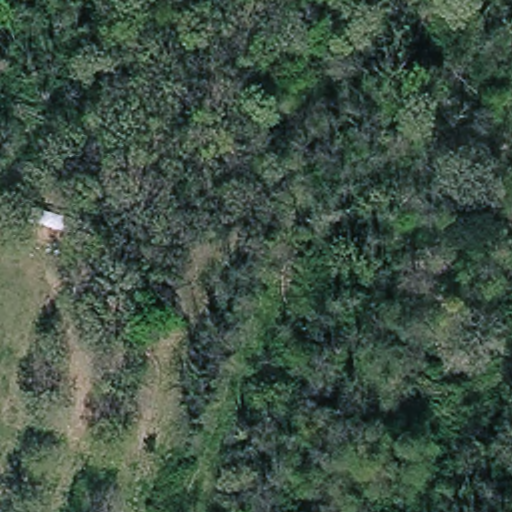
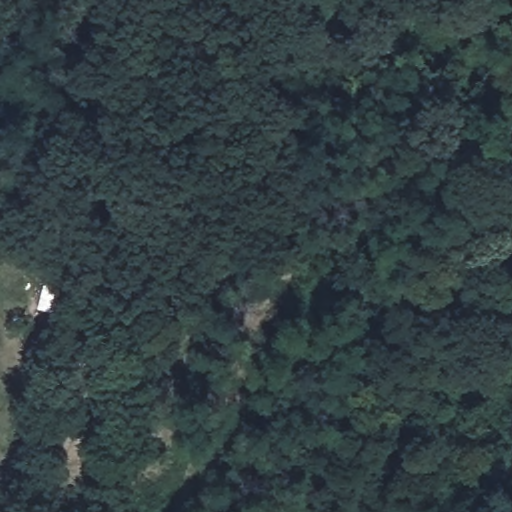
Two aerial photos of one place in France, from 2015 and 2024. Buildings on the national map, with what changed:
unchanged [(55,230),(70,233),(65,260),(51,257),(55,230)]

